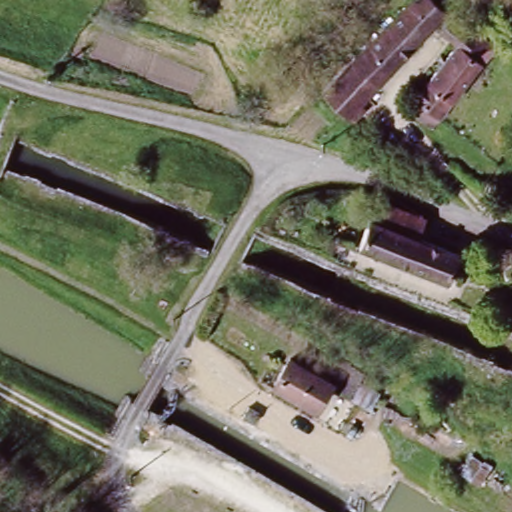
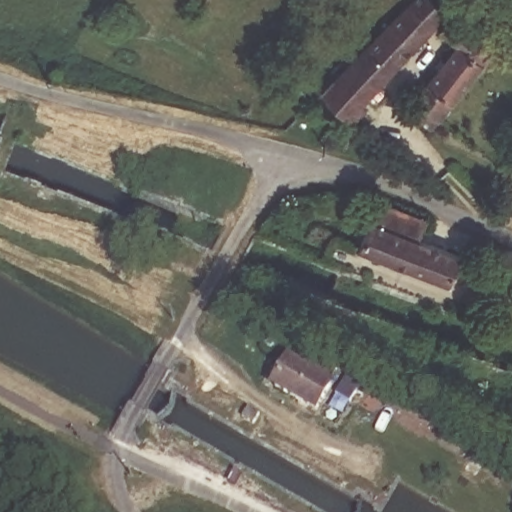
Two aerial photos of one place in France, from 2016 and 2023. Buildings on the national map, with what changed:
unchanged [(444,17),(374,83),(381,90),(369,102),(366,99),(358,105),(362,109),(352,118),(324,89),(415,0),(430,0),(444,17)]
unchanged [(485,38),(478,47),(489,57),(436,124),(424,113),(434,103),(424,92),(467,37),(453,25),(462,16),(485,38)]
unchanged [(421,210),(415,226),(466,246),(461,260),(469,263),(465,272),(456,268),(451,280),(358,242),(379,193),(421,210)]
unchanged [(306,369),(314,355),(336,368),(326,385),(331,387),(317,410),(276,386),(292,361),(306,369)]
unchanged [(390,373),(374,399),(360,391),(376,365),(390,373)]
unchanged [(251,401),(265,409),(261,418),(245,413),(251,401)]

